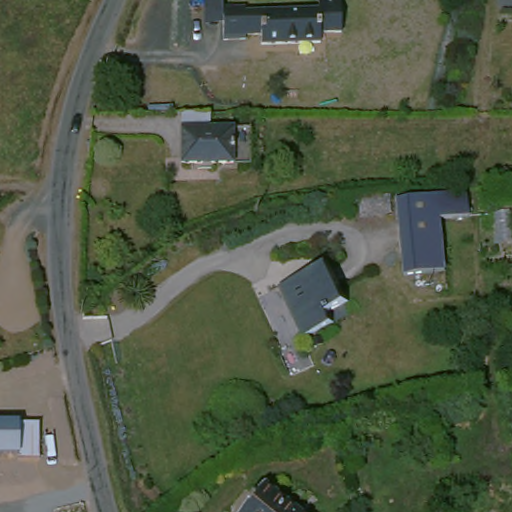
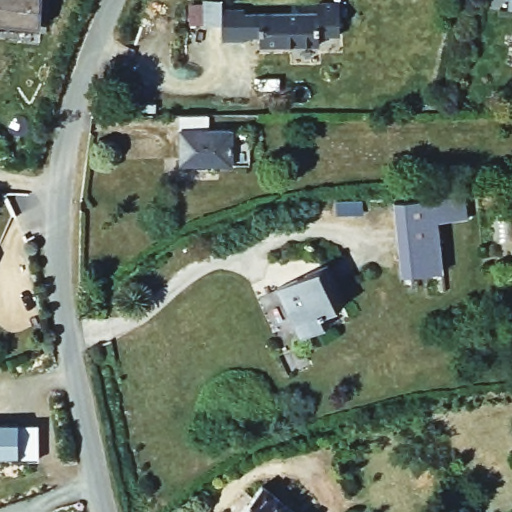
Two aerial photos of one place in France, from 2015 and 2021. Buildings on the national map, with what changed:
new [(38,26),(0,26),(0,0),(39,0),(38,26)]
unchanged [(246,9),(321,9),(321,0),(344,0),(344,31),(322,30),(322,40),(262,40),(262,30),(246,30),(246,34),(224,34),(224,18),(206,18),(206,0),(224,0),(224,4),(246,4),(246,9)]
unchanged [(239,168),(224,169),(224,175),(196,177),(196,169),(183,169),(183,136),(184,119),(214,119),(214,135),(239,135),(239,168)]
unchanged [(461,193),(464,218),(434,221),(439,271),(400,275),(392,200),(461,193)]
unchanged [(341,305),(323,311),(330,329),(299,341),(276,280),(326,264),(341,305)]
unchanged [(40,458),(18,458),(18,453),(0,454),(0,421),(19,421),(19,426),(39,425),(40,458)]
unchanged [(234,512),(269,482),(292,512),(234,512)]

